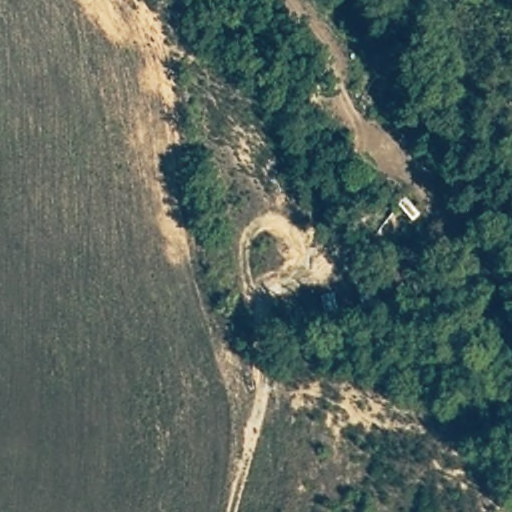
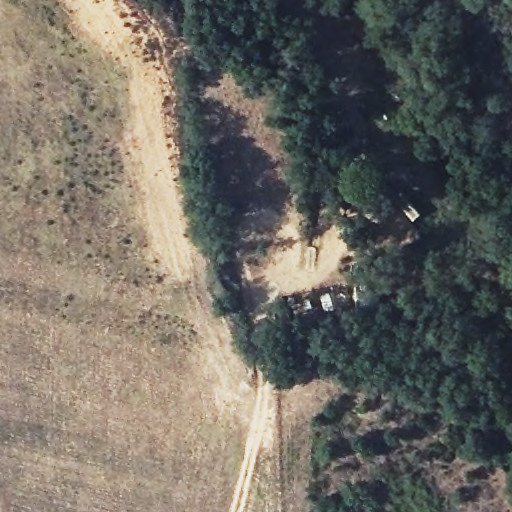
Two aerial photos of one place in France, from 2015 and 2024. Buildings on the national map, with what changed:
unchanged [(381,306),(362,309),(359,290),(376,287),(381,306)]

